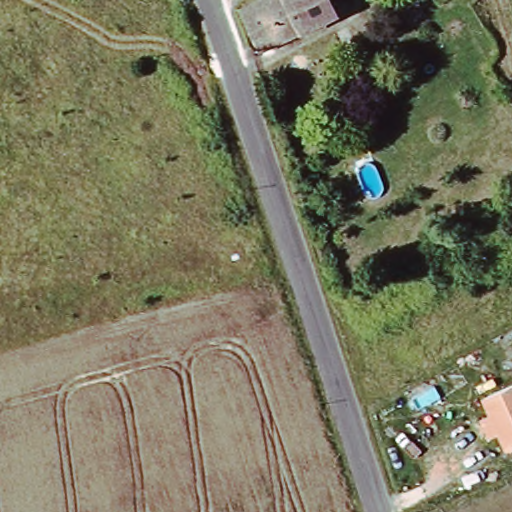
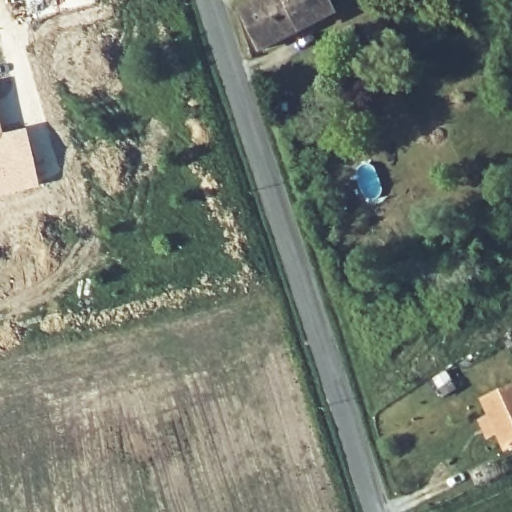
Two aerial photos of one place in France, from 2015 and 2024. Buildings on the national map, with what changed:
unchanged [(240,15),(269,0),(327,0),(334,15),(258,52),(240,15)]
unchanged [(408,11),(402,0),(425,0),(426,1),(408,11)]
new [(2,130),(26,125),(40,185),(0,194),(0,122),(2,130)]
unchanged [(484,411),(512,399),(512,457),(506,460),(484,411)]

